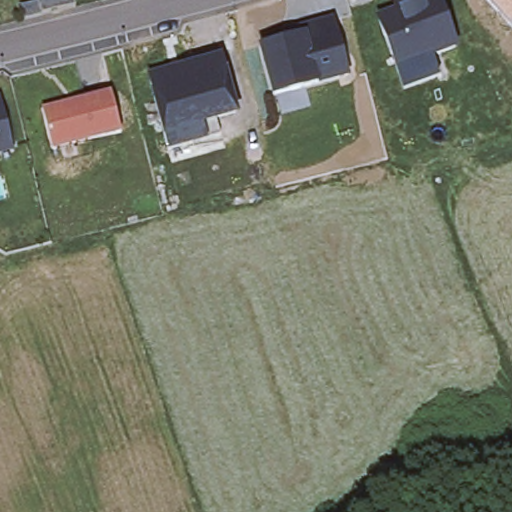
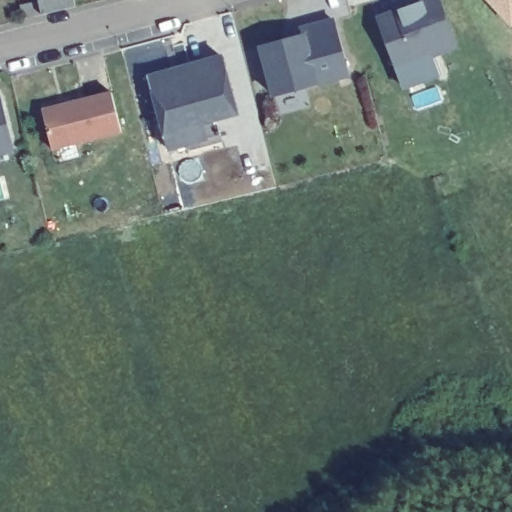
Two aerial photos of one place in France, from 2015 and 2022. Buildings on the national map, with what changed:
unchanged [(74,0),(76,7),(42,15),(26,18),(23,6),(39,1),(38,0),(74,0)]
unchanged [(417,0),(442,0),(459,47),(397,71),(375,15),(417,0)]
unchanged [(512,0),(512,27),(487,0),(512,0)]
unchanged [(350,77),(306,87),(311,107),(279,116),(262,47),(305,37),(303,29),(335,21),(350,77)]
unchanged [(223,57),(239,112),(217,118),(221,136),(170,149),(150,77),(223,57)]
unchanged [(121,133),(52,151),(43,111),(111,92),(121,133)]
unchanged [(1,109),(12,157),(0,159),(0,107),(1,109)]

